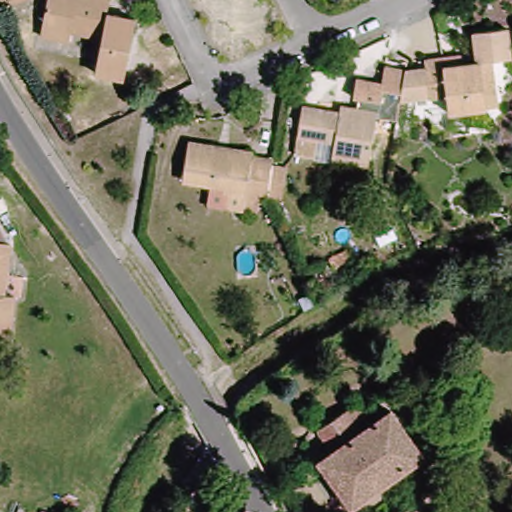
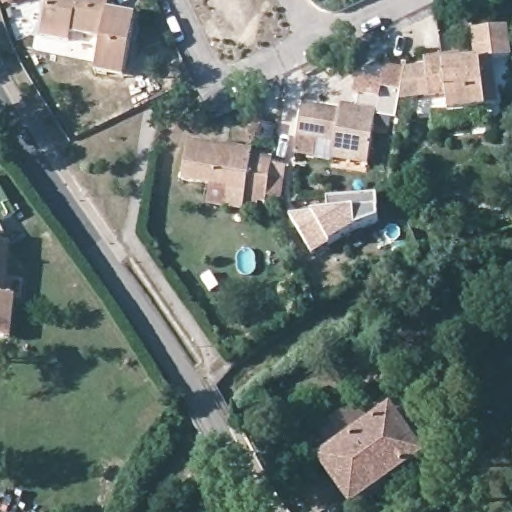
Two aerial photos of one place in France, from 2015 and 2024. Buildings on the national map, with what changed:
unchanged [(32,0),(20,6),(18,0),(32,0)]
unchanged [(92,65),(98,38),(70,33),(68,43),(42,37),(45,27),(50,0),(105,0),(103,13),(130,18),(120,69),(118,79),(91,73),(92,65)]
unchanged [(427,127),(423,111),(442,110),(441,93),(400,96),(405,68),(423,65),(423,57),(439,55),(455,53),(457,64),(474,60),(472,31),(505,25),(510,56),(488,58),(493,103),(475,105),(477,120),(427,127)]
unchanged [(332,151),(335,139),(298,133),(303,103),(339,110),(340,105),(357,108),(360,95),(354,93),(358,76),(377,79),(383,80),(385,65),(405,68),(400,96),(397,113),(412,115),(408,134),(394,132),(396,119),(375,115),(367,156),(365,166),(330,158),(332,151)]
unchanged [(228,191),(212,189),(212,184),(185,180),(192,140),(221,145),(231,146),(252,150),(252,156),(273,159),(272,165),(285,167),(280,200),(267,199),(243,197),(242,208),(227,206),(228,191)]
new [(313,256),(285,215),(327,214),(327,199),(377,197),(377,223),(313,256)]
unchanged [(0,238),(0,223),(10,240),(0,238)]
unchanged [(5,291),(13,292),(9,337),(0,336),(0,238),(10,240),(5,291)]
unchanged [(397,414),(425,465),(350,511),(325,460),(337,453),(330,439),(325,430),(352,413),(357,422),(362,434),(397,414)]

